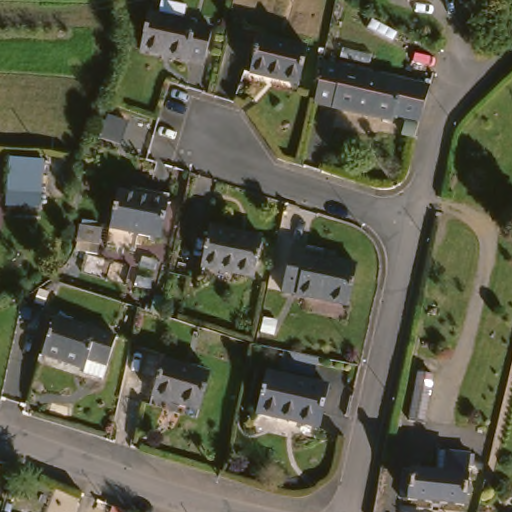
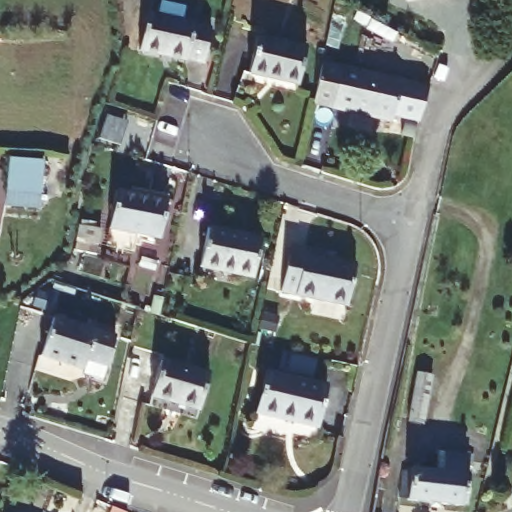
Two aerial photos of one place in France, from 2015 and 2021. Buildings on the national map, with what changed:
unchanged [(150,8),(190,18),(189,23),(209,28),(200,60),(140,45),(150,8)]
unchanged [(306,46),(297,83),(250,72),(259,34),(306,46)]
unchanged [(323,62),(430,89),(417,122),(315,97),(323,62)]
unchanged [(42,162),(39,193),(5,190),(9,158),(42,162)]
unchanged [(162,200),(155,238),(108,229),(116,190),(162,200)]
unchanged [(257,239),(250,277),(199,267),(207,229),(257,239)]
unchanged [(290,248),(325,255),(324,262),(353,268),(345,303),(280,290),(290,248)]
unchanged [(48,321),(110,338),(102,367),(99,377),(80,372),(81,368),(77,367),(38,357),(48,321)]
unchanged [(207,373),(197,408),(154,396),(165,361),(207,373)]
unchanged [(432,378),(422,422),(406,418),(416,375),(432,378)]
unchanged [(267,418),(276,377),(332,390),(324,431),(267,418)]
unchanged [(411,467),(447,471),(450,448),(470,451),(463,502),(407,495),(411,467)]
unchanged [(373,480),(385,482),(380,512),(369,512),(373,480)]

